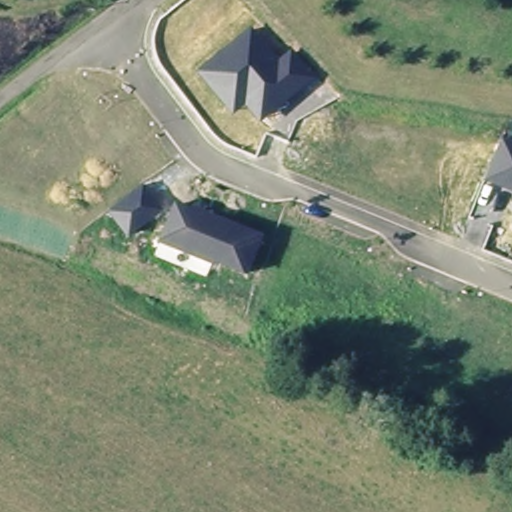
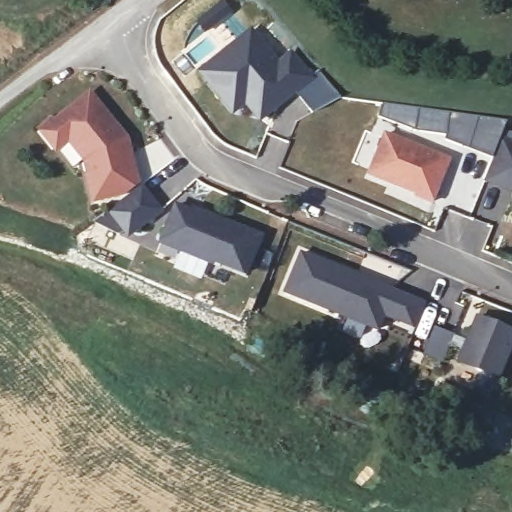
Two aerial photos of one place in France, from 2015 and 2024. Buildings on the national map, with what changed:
unchanged [(251,26),(279,59),(291,49),(315,79),(260,124),(244,105),(233,114),(196,71),(251,26)]
new [(90,89),(128,139),(140,185),(134,189),(123,197),(89,205),(81,174),(85,173),(81,160),(67,143),(55,154),(36,129),(50,116),(53,119),(90,89)]
new [(396,135),(460,161),(442,204),(426,197),(427,194),(380,174),(396,135)]
unchanged [(512,141),(512,191),(484,180),(502,138),(512,141)]
unchanged [(164,211),(128,238),(108,211),(142,184),(164,211)]
unchanged [(174,201),(263,234),(247,277),(213,263),(212,265),(157,243),(174,201)]
new [(416,328),(399,320),(384,314),(378,329),(286,290),(302,252),(313,256),(311,259),(317,262),(318,259),(362,278),(361,280),(368,283),(370,280),(409,297),(426,304),(416,328)]
new [(512,329),(512,350),(500,378),(460,362),(480,316),(512,329)]
new [(436,325),(457,334),(445,364),(424,354),(436,325)]

